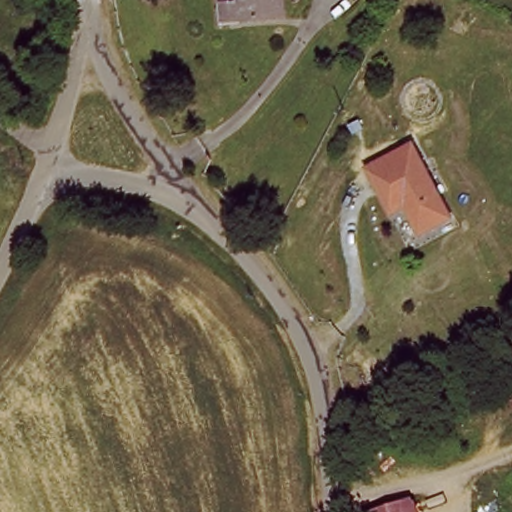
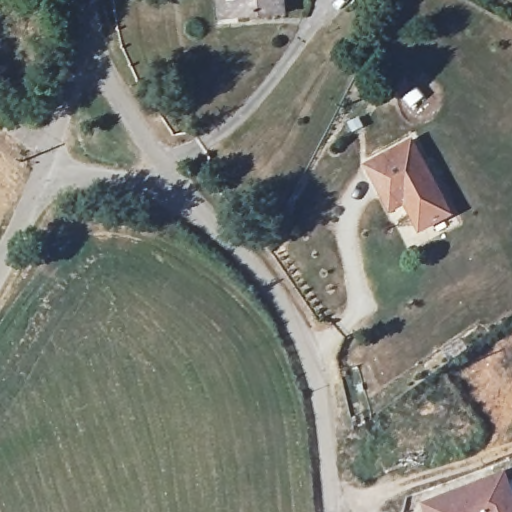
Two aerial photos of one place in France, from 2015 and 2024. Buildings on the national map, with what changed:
unchanged [(239,17),(237,0),(288,0),(290,9),(239,17)]
unchanged [(360,175),(402,143),(455,207),(427,229),(406,203),(390,214),(360,175)]
new [(509,472),(512,482),(512,512),(424,512),(421,504),(509,472)]

